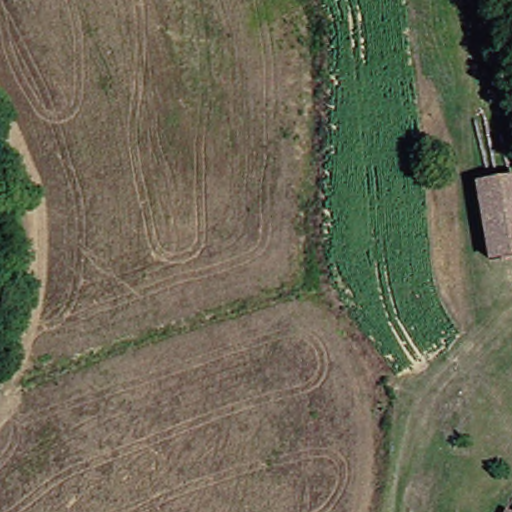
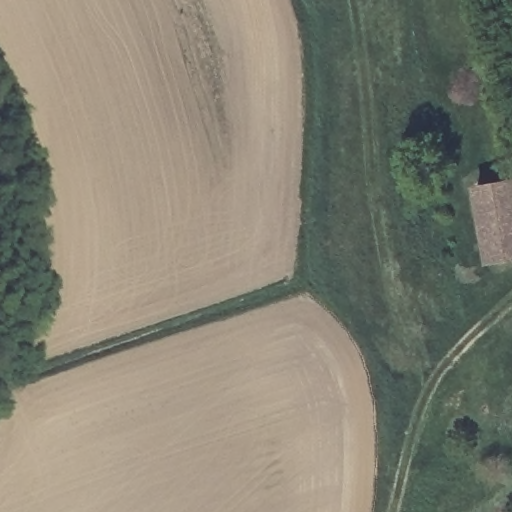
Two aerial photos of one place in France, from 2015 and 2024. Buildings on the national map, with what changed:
unchanged [(512,177),(512,258),(495,260),(481,181),(512,177)]

